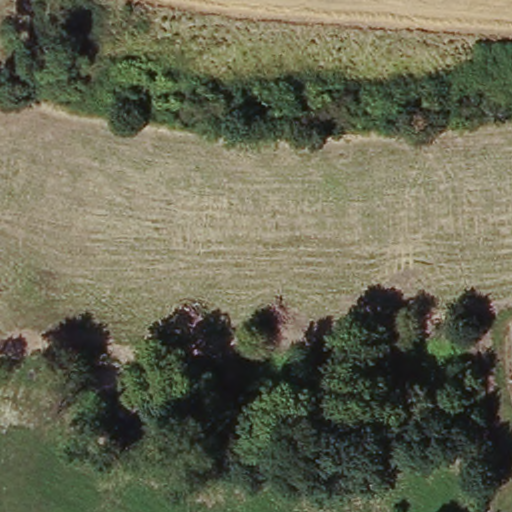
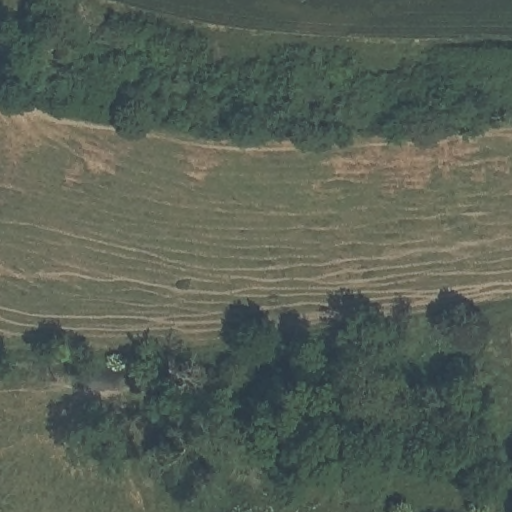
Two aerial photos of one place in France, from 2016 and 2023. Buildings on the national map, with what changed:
unchanged [(332,407),(332,418),(317,419),(317,408),(332,407)]

